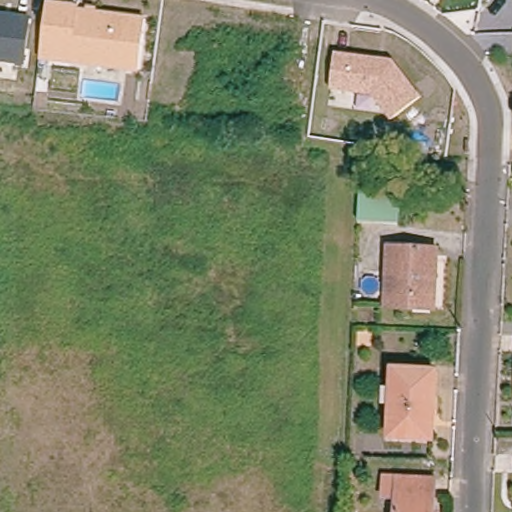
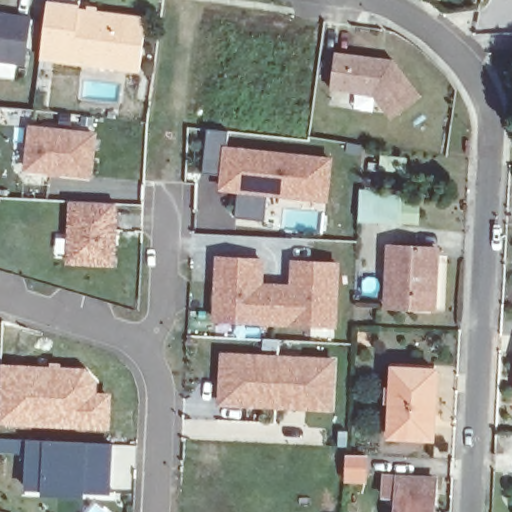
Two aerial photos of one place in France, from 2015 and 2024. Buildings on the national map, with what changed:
unchanged [(140,71),(41,58),(45,32),(49,4),(81,8),(80,11),(147,20),(140,71)]
unchanged [(0,61),(0,15),(31,19),(26,64),(0,61)]
unchanged [(422,98),(394,120),(374,95),(332,89),(337,54),(394,61),(422,98)]
new [(236,215),(238,200),(241,171),(226,170),(225,173),(204,171),(209,126),(230,129),(229,146),(332,157),(328,197),(270,191),(268,204),(267,219),(236,215)]
new [(96,134),(91,175),(28,168),(32,127),(96,134)]
unchanged [(379,198),(378,221),(364,220),(365,198),(379,198)]
new [(115,263),(70,261),(73,200),(118,202),(115,263)]
unchanged [(414,306),(388,304),(391,246),(437,248),(434,298),(433,307),(414,306)]
new [(263,259),(262,284),(278,285),(276,322),(217,319),(220,257),(263,259)]
new [(294,286),(295,261),(339,263),(336,325),(276,322),(278,285),(294,286)]
new [(280,339),(280,348),(270,347),(270,339),(280,339)]
new [(277,397),(257,396),(257,404),(222,402),(224,354),(279,356),(277,397)]
new [(276,397),(277,397),(279,356),(334,359),(332,407),(276,404),(257,404),(257,396),(276,397)]
new [(96,381),(94,425),(0,421),(0,399),(1,367),(86,371),(96,381)]
unchanged [(394,367),(434,370),(431,438),(390,435),(394,367)]
new [(113,443),(112,459),(110,491),(83,490),(83,480),(46,478),(46,488),(28,488),(29,452),(0,451),(0,438),(86,442),(113,443)]
unchanged [(427,512),(392,512),(393,494),(380,494),(381,476),(393,476),(429,479),(427,512)]

